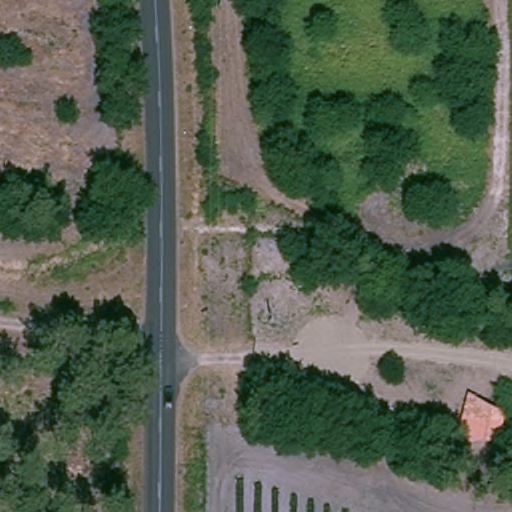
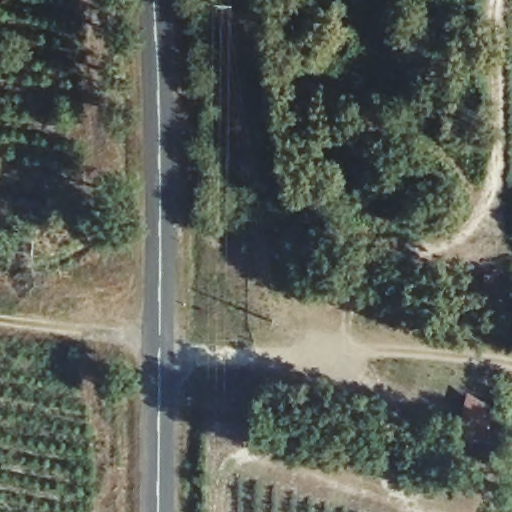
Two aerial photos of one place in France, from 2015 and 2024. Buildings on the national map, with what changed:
unchanged [(506,413),(495,443),(455,441),(468,391),(506,413)]

